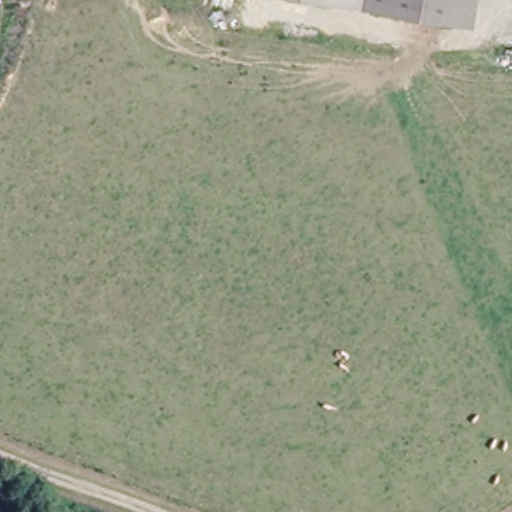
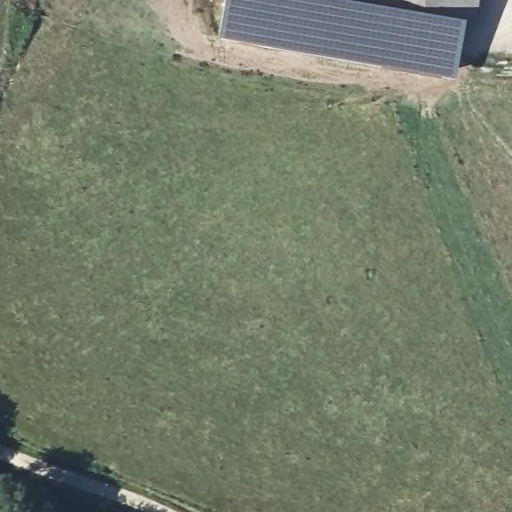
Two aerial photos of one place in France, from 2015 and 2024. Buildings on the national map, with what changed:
new [(229,37),(235,0),(349,0),(466,19),(457,75),(229,37)]
demolished [(366,5),(338,0),(477,0),(474,22),(366,5)]
new [(470,0),(467,20),(348,0),(470,0)]

